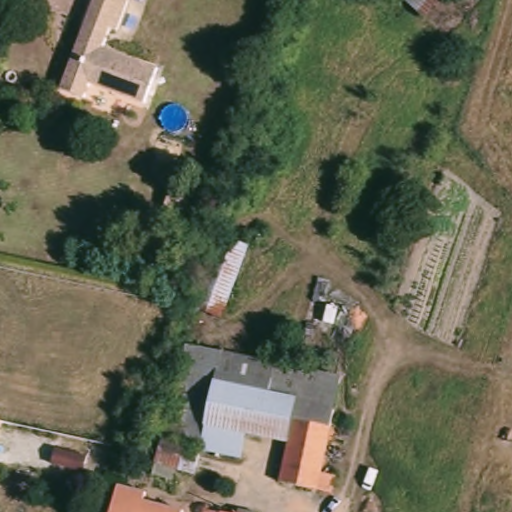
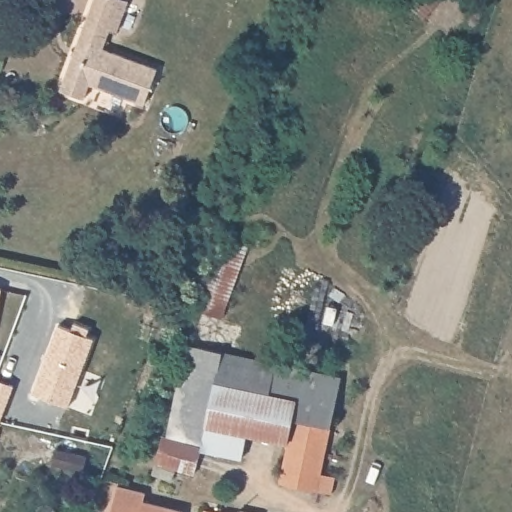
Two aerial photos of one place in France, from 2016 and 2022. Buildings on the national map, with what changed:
unchanged [(91,86),(86,101),(62,92),(96,0),(121,0),(129,3),(118,34),(111,31),(104,51),(159,70),(146,106),(91,86)]
new [(424,18),(402,0),(439,0),(424,18)]
unchanged [(189,309),(216,237),(253,248),(226,320),(189,309)]
new [(57,323),(71,328),(74,322),(90,327),(87,335),(94,338),(68,406),(31,393),(57,323)]
unchanged [(185,343),(217,349),(215,360),(210,382),(201,428),(197,449),(196,454),(190,475),(177,471),(174,484),(149,477),(185,343)]
unchanged [(340,382),(331,429),(291,421),(295,398),(210,382),(215,360),(340,382)]
new [(0,418),(0,379),(14,385),(0,418)]
unchanged [(291,421),(331,429),(323,473),(339,475),(336,493),(279,484),(286,444),(291,421)]
unchanged [(222,431),(248,436),(244,459),(197,449),(201,428),(222,431)]
unchanged [(141,500),(176,508),(175,512),(116,512),(121,487),(143,492),(141,500)]
unchanged [(265,511),(265,512),(244,512),(244,507),(265,511)]
unchanged [(217,512),(204,512),(205,510),(217,512)]

